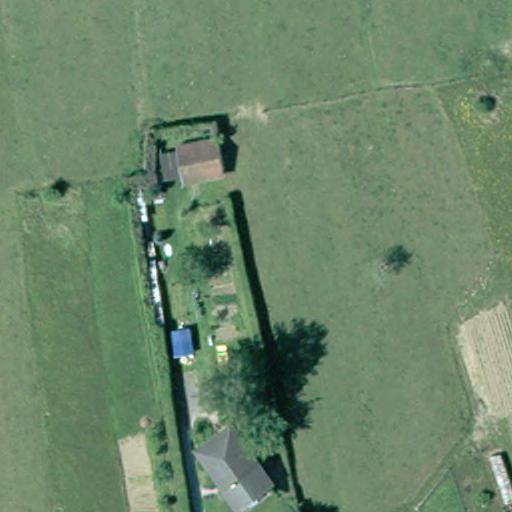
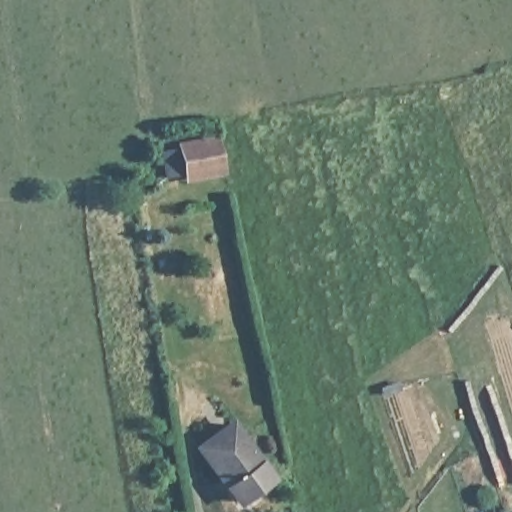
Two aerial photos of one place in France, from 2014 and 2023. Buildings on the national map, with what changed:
unchanged [(222,139),(228,170),(189,178),(182,149),(222,139)]
unchanged [(276,476),(243,501),(204,449),(237,424),(276,476)]

